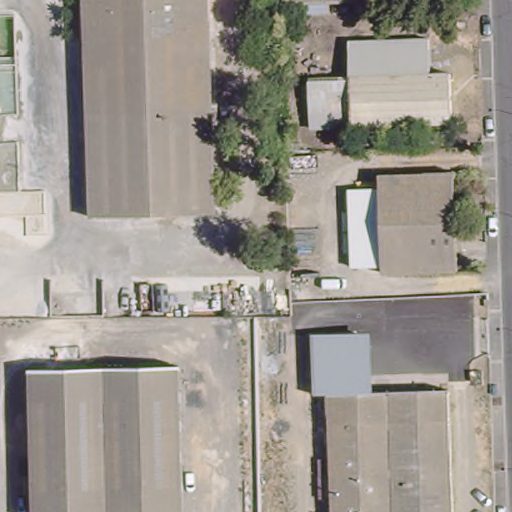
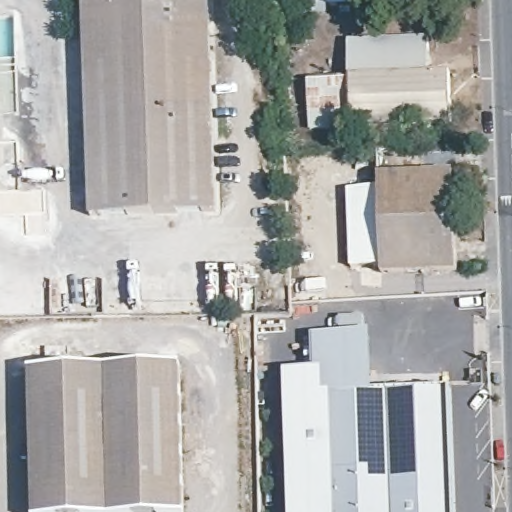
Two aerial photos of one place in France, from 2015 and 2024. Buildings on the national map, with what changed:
unchanged [(87,126),(82,0),(207,0),(215,213),(92,217),(87,126)]
unchanged [(428,75),(450,76),(450,125),(350,128),(350,122),(348,76),(347,41),(427,39),(428,75)]
unchanged [(350,122),(313,121),(310,76),(348,76),(350,122)]
unchanged [(379,176),(454,175),(457,272),(382,273),(382,268),(379,190),(379,176)]
unchanged [(350,268),(350,192),(379,190),(382,268),(350,268)]
unchanged [(372,344),(373,403),(327,404),(312,404),(310,345),(372,344)]
unchanged [(34,512),(32,369),(182,365),(183,512),(34,512)]
new [(311,371),(312,404),(327,404),(329,444),(331,512),(289,512),(284,372),(311,371)]
unchanged [(331,512),(329,444),(327,404),(448,401),(452,512),(331,512)]

